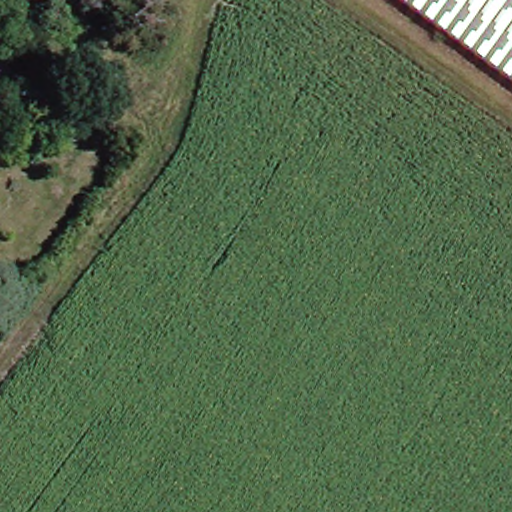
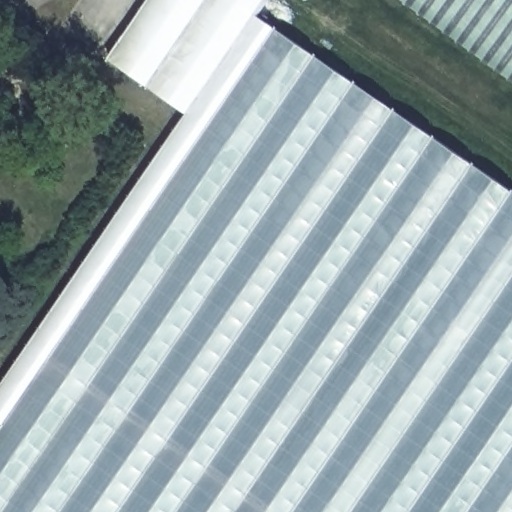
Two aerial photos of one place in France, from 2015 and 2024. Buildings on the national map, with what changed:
new [(255,16),(512,191),(512,512),(0,512),(0,430),(4,425),(0,422),(0,389),(188,114),(108,60),(150,0),(266,0),(255,16)]
unchanged [(512,86),(399,0),(512,0),(512,86)]

